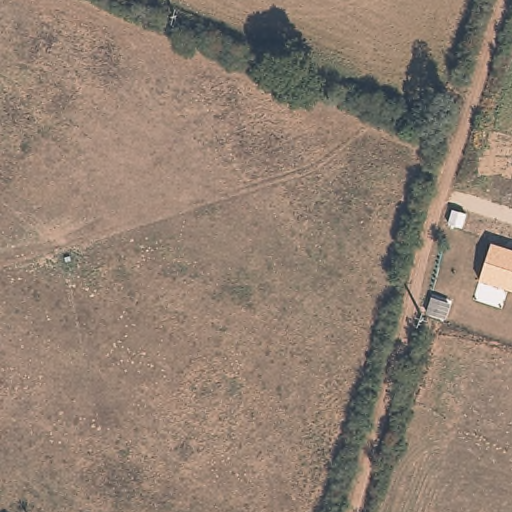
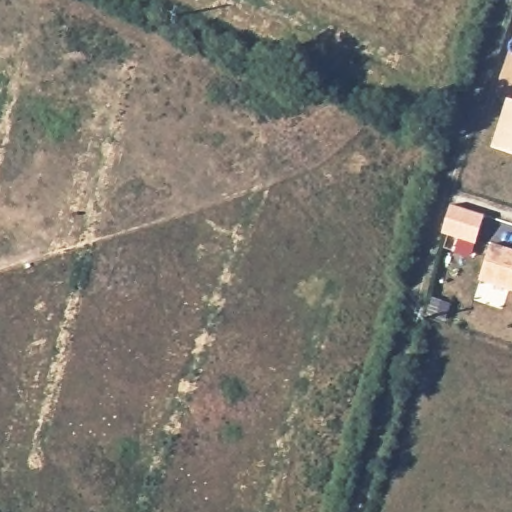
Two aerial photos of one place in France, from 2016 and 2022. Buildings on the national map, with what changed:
new [(512,100),(512,154),(492,147),(507,99),(512,100)]
new [(451,205),(484,216),(476,245),(442,235),(451,205)]
unchanged [(493,245),(512,250),(512,291),(481,280),(493,245)]

